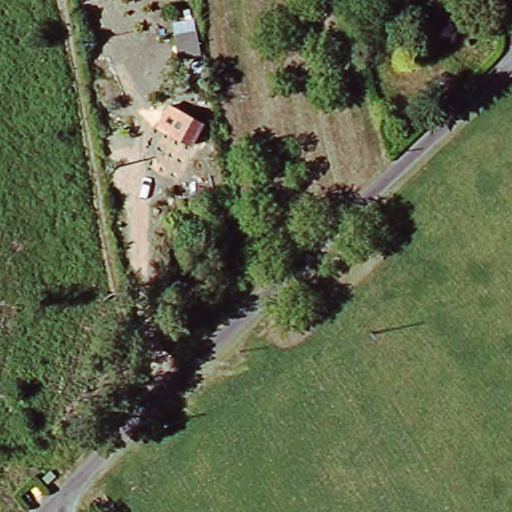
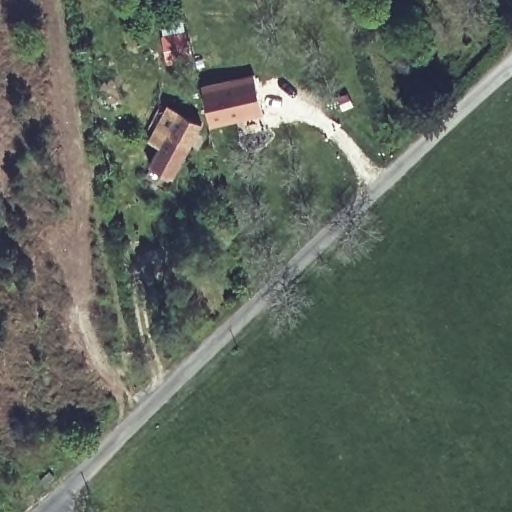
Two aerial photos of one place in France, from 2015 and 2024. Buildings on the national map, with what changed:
new [(167,64),(160,28),(185,24),(191,59),(167,64)]
new [(253,73),(262,116),(209,128),(199,84),(253,73)]
unchanged [(204,124),(173,182),(148,168),(160,145),(148,139),(167,104),(204,124)]

